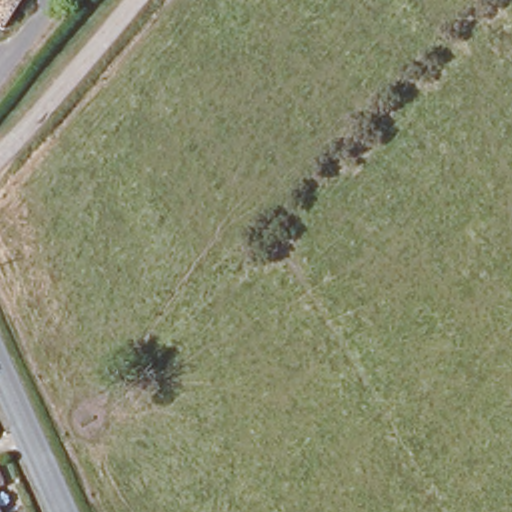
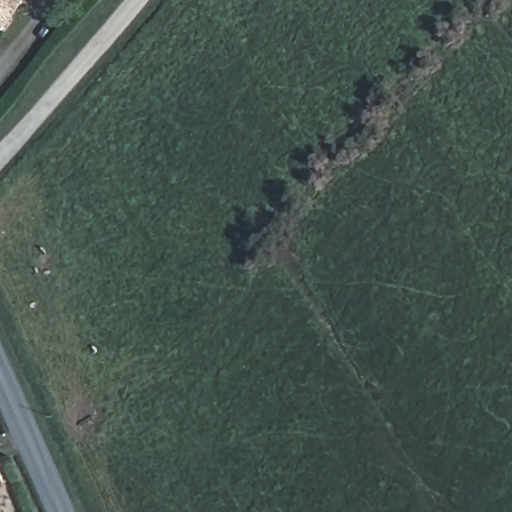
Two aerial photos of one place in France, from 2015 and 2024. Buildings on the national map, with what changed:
unchanged [(0,28),(0,0),(26,0),(5,31),(0,28)]
unchanged [(0,501),(0,486),(6,497),(0,501)]

